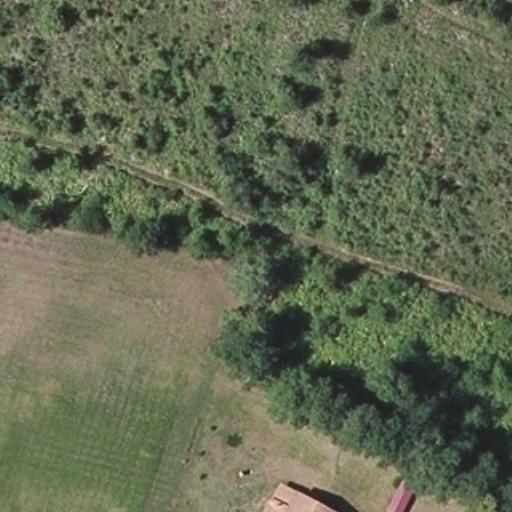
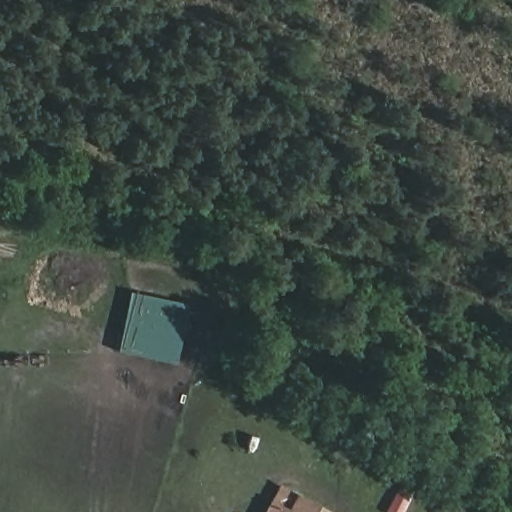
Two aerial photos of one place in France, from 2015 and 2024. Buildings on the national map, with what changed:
new [(176,364),(119,351),(132,291),(189,303),(176,364)]
unchanged [(272,500),(290,510),(299,493),(331,512),(265,512),(272,500)]

